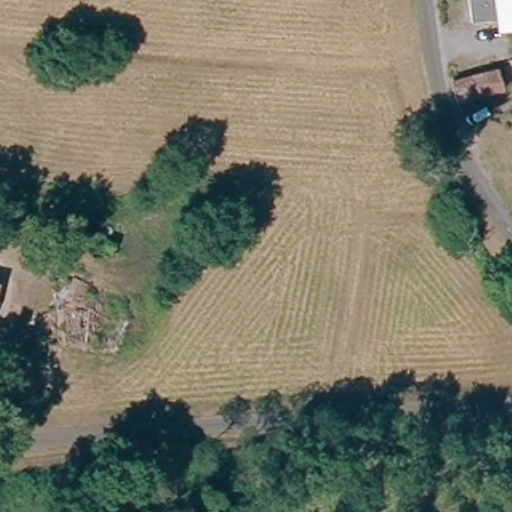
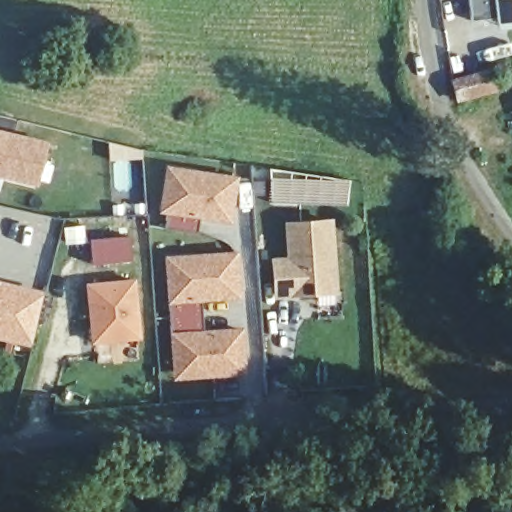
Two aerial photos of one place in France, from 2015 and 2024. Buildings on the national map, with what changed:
unchanged [(496,16),(471,19),(469,0),(512,0),(512,25),(497,27),(496,16)]
unchanged [(462,105),(456,87),(450,89),(448,80),(479,71),(500,65),(507,89),(501,91),(462,105)]
new [(48,140),(38,187),(0,178),(0,129),(48,140)]
new [(164,205),(170,164),(180,165),(237,173),(231,215),(202,211),(200,228),(167,224),(170,206),(164,205)]
new [(287,255),(285,221),(334,217),(340,295),(276,301),(271,257),(287,255)]
new [(85,222),(86,236),(68,238),(67,224),(85,222)]
new [(241,291),(204,294),(205,311),(172,313),(171,295),(167,254),(180,253),(237,249),(241,291)]
new [(136,276),(142,334),(95,338),(89,281),(136,276)]
new [(43,293),(32,341),(0,333),(0,283),(43,293)]
demolished [(60,287),(126,298),(116,349),(50,337),(60,287)]
new [(173,331),(172,313),(205,311),(207,328),(243,325),(246,367),(189,371),(177,372),(173,331)]

